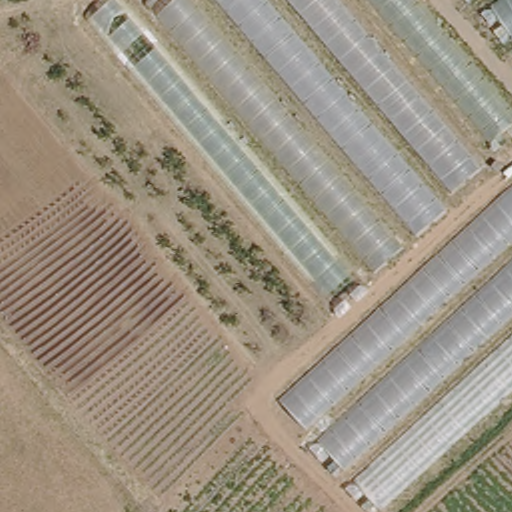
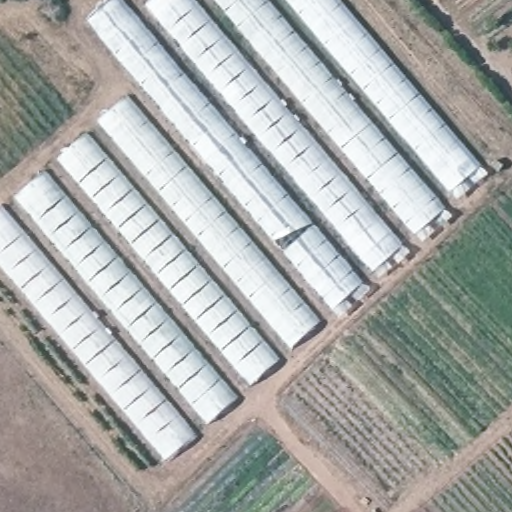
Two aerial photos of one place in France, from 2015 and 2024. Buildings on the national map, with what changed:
unchanged [(331,316),(87,16),(101,0),(130,0),(141,11),(152,0),(340,0),(478,161),(331,316)]
demolished [(362,0),(419,0),(512,112),(512,122),(490,145),(362,0)]
demolished [(475,2),(473,0),(477,0),(475,2)]
demolished [(488,0),(512,0),(512,35),(488,0)]
new [(318,323),(292,346),(100,121),(127,96),(318,323)]
new [(87,132),(277,362),(252,383),(60,157),(87,132)]
new [(237,400),(213,420),(19,191),(43,172),(237,400)]
demolished [(383,508),(275,399),(512,186),(512,390),(383,508)]
new [(169,457),(0,259),(0,206),(2,205),(197,434),(169,457)]

